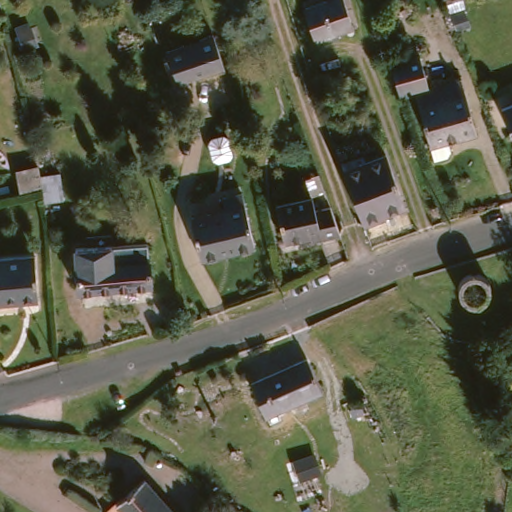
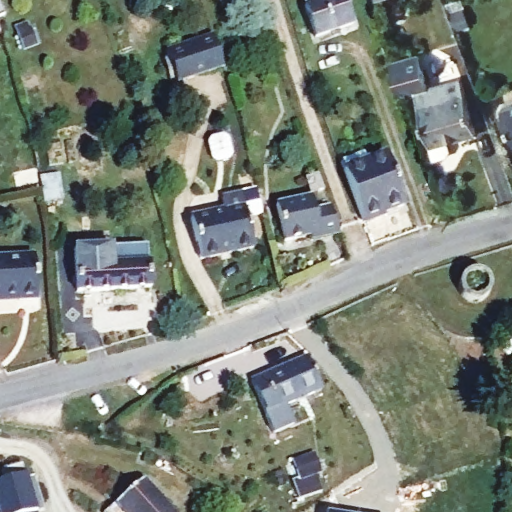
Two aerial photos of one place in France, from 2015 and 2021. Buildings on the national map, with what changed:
unchanged [(303,12),(339,0),(340,0),(350,29),(313,42),(303,12)]
unchanged [(219,72),(172,86),(162,53),(209,38),(214,54),(219,72)]
unchanged [(436,164),(430,150),(412,97),(397,104),(386,69),(415,59),(426,92),(455,82),(473,134),(447,144),(450,154),(448,160),(436,164)]
unchanged [(497,110),(512,104),(512,144),(497,110)]
unchanged [(231,155),(228,160),(216,162),(211,159),(209,143),(211,138),(223,136),(228,139),(231,155)]
unchanged [(403,206),(386,213),(387,217),(365,226),(345,172),(383,156),(403,206)]
unchanged [(17,195),(13,174),(37,169),(40,191),(17,195)]
unchanged [(255,254),(205,266),(195,222),(224,215),(222,204),(244,200),(255,254)]
unchanged [(328,211),(338,240),(322,245),(320,236),(283,245),(275,209),(311,200),(314,215),(328,211)]
unchanged [(136,246),(136,240),(145,240),(148,275),(151,274),(151,282),(148,281),(149,289),(111,292),(108,249),(136,246)]
unchanged [(77,296),(76,287),(71,287),(70,278),(75,277),(73,252),(108,249),(111,292),(77,296)]
unchanged [(35,258),(41,303),(20,306),(20,303),(10,305),(0,306),(0,263),(5,262),(35,258)]
unchanged [(318,392),(265,417),(250,386),(303,360),(318,392)]
new [(1,470),(21,464),(25,478),(28,477),(31,489),(36,487),(42,510),(36,512),(0,512),(0,482),(4,481),(1,470)]
unchanged [(172,512),(113,512),(143,482),(172,512)]

